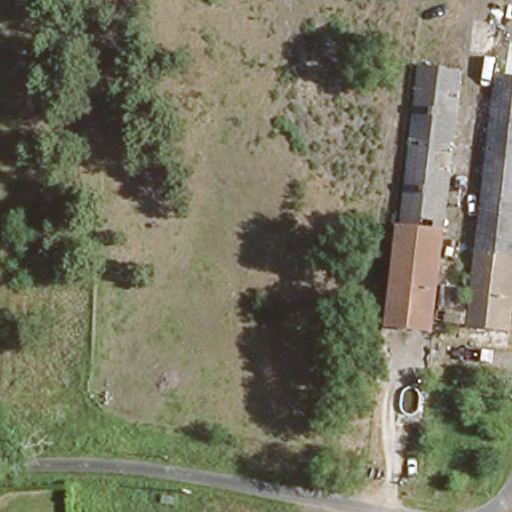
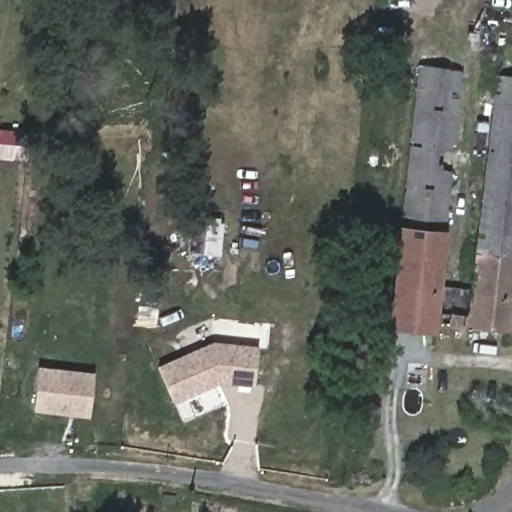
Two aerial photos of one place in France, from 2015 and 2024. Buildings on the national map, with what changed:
unchanged [(430,320),(392,313),(423,69),(462,73),(430,320)]
unchanged [(470,322),(501,78),(512,78),(512,301),(508,328),(470,322)]
new [(220,223),(223,223),(220,255),(186,252),(191,211),(208,213),(208,217),(220,218),(220,223)]
unchanged [(443,287),(468,291),(466,323),(439,320),(443,287)]
new [(254,387),(219,383),(174,404),(158,365),(214,341),(258,346),(254,387)]
new [(89,418),(33,412),(38,366),(93,372),(89,418)]

